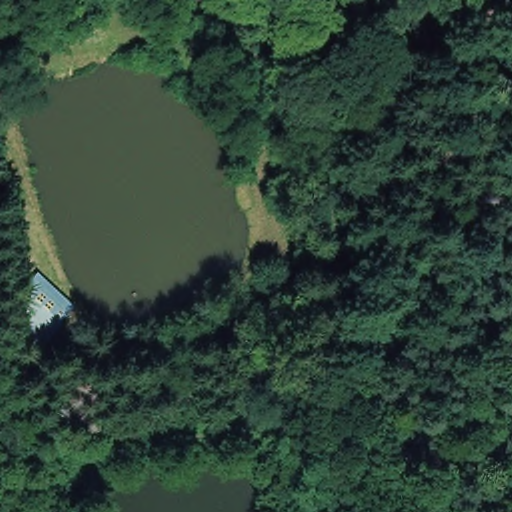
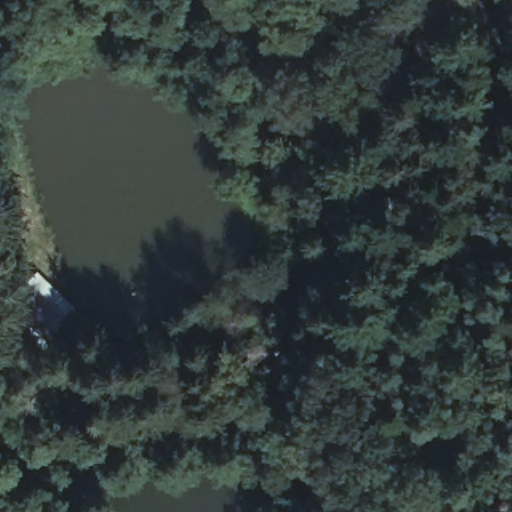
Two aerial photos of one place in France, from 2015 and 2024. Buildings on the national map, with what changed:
unchanged [(45,346),(21,333),(37,307),(57,324),(45,346)]

